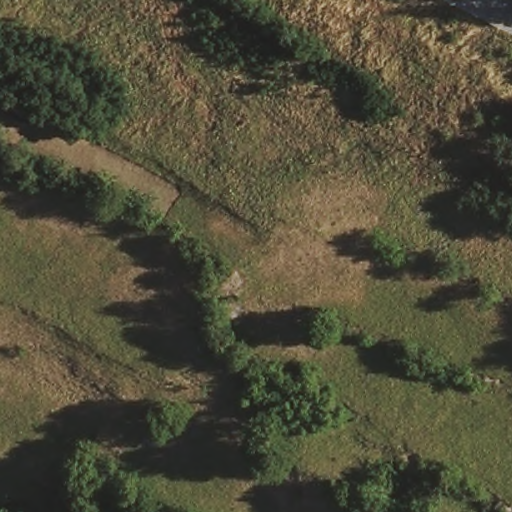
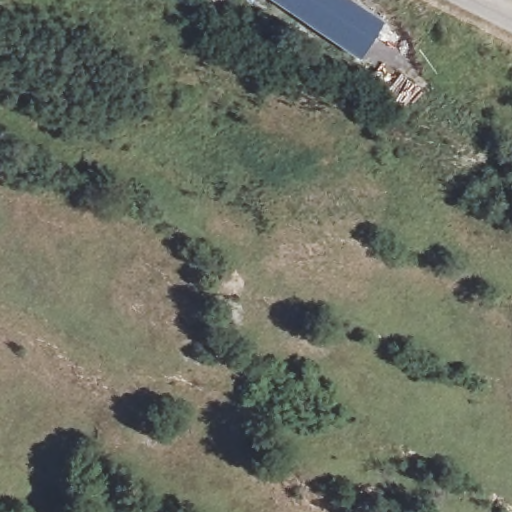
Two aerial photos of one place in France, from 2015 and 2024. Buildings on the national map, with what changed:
new [(359,61),(266,0),(351,0),(385,23),(359,61)]

